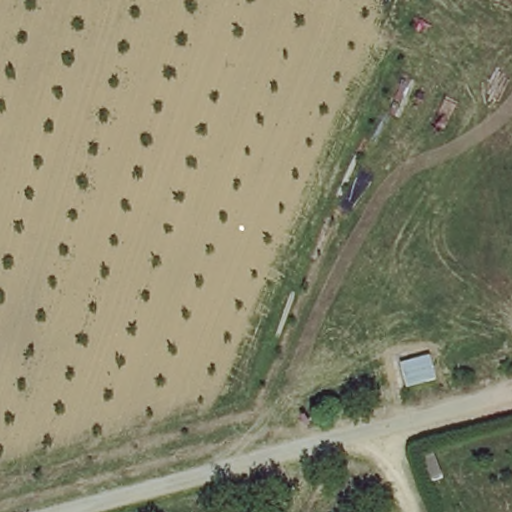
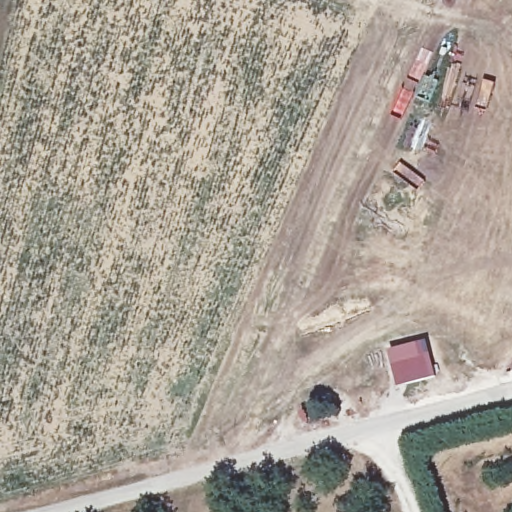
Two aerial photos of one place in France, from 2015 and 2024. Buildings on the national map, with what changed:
new [(426,342),(437,377),(398,388),(388,353),(426,342)]

